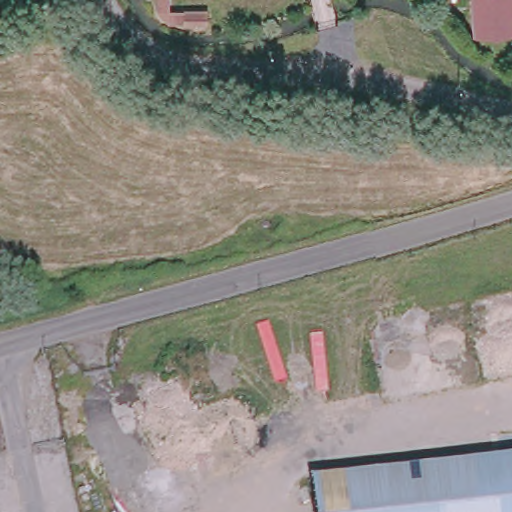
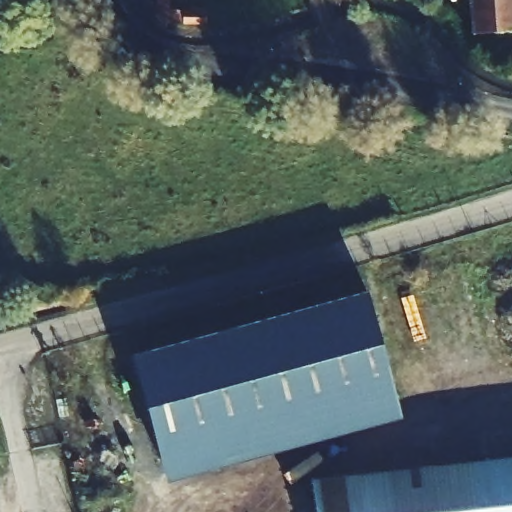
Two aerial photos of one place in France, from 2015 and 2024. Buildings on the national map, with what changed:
unchanged [(171,25),(171,21),(157,10),(157,0),(172,0),(172,7),(207,8),(207,25),(171,25)]
unchanged [(470,0),(512,0),(512,32),(473,36),(470,0)]
demolished [(73,308),(70,295),(91,290),(94,303),(73,308)]
new [(402,418),(375,425),(373,421),(353,427),(355,431),(167,482),(135,361),(128,363),(127,356),(134,343),(138,342),(141,352),(367,291),(402,418)]
unchanged [(310,485),(487,465),(512,462),(512,512),(314,512),(310,485)]

